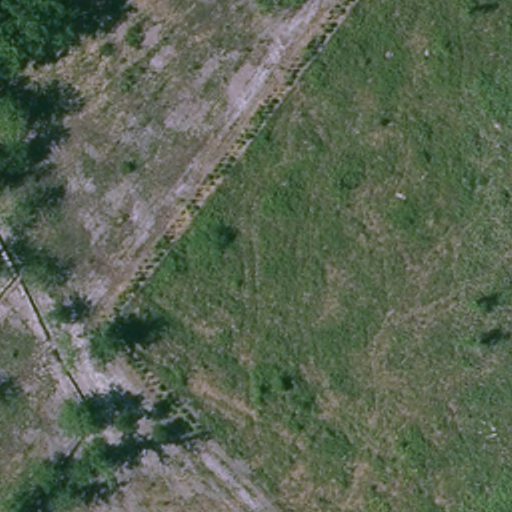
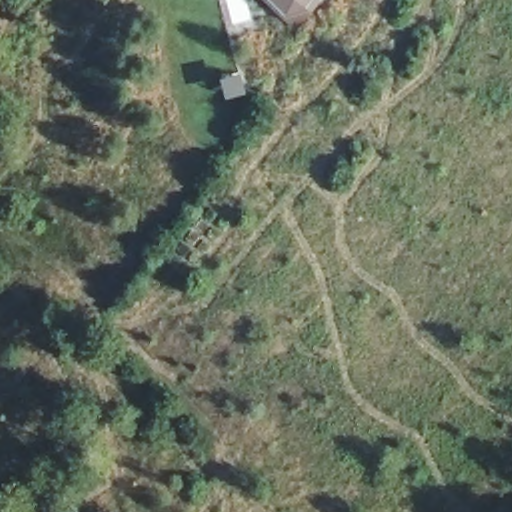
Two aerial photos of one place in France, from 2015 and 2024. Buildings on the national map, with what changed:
new [(284,20),(265,0),(322,0),(312,14),(284,20)]

